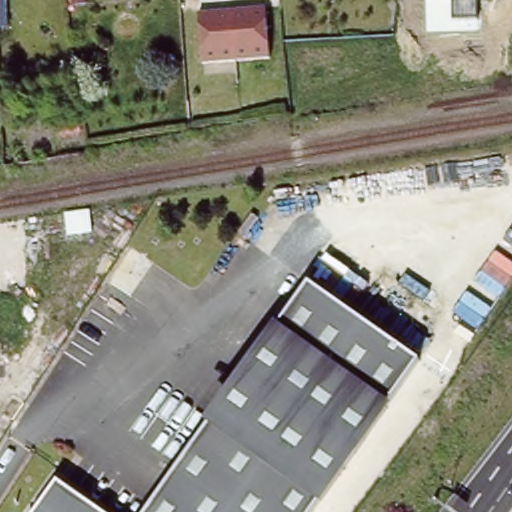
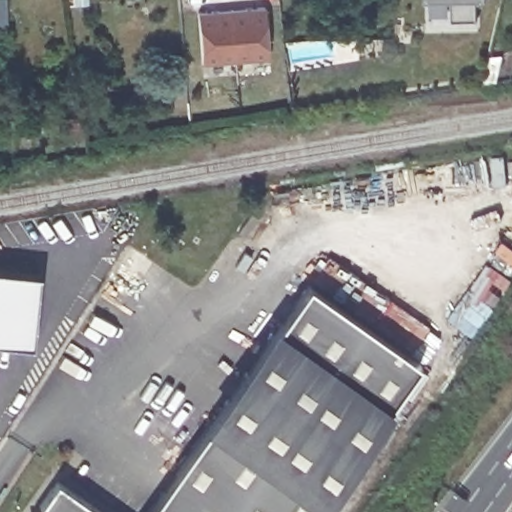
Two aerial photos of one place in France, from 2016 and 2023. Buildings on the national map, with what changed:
unchanged [(452,21),(452,0),(477,0),(478,21),(452,21)]
unchanged [(197,15),(264,9),(270,59),(202,65),(197,15)]
new [(35,344),(0,342),(0,268),(40,271),(35,344)]
unchanged [(415,358),(383,404),(317,498),(316,497),(306,512),(140,512),(305,279),(415,358)]
unchanged [(53,476),(103,512),(28,512),(53,476)]

